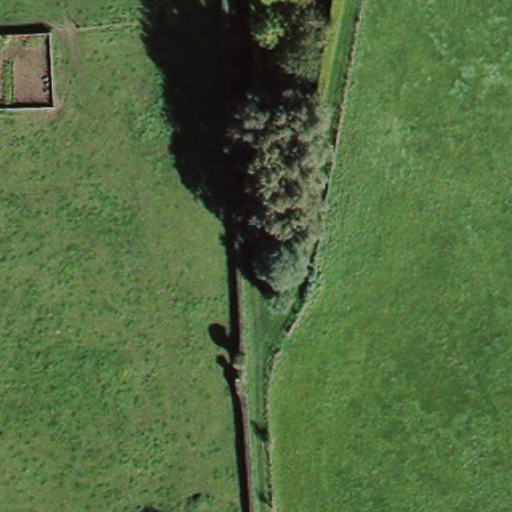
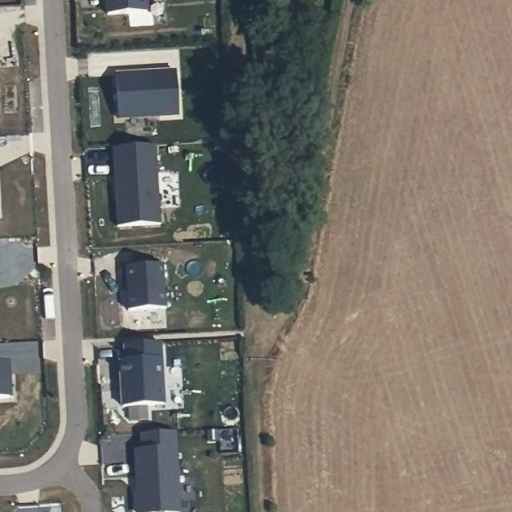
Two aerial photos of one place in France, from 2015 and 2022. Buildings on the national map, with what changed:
new [(147,15),(107,17),(106,0),(146,0),(147,15)]
new [(177,69),(181,116),(120,117),(116,71),(177,69)]
new [(155,143),(160,225),(117,225),(111,143),(155,143)]
new [(161,264),(165,310),(130,311),(126,264),(161,264)]
new [(123,358),(121,342),(161,340),(167,405),(123,407),(117,358),(123,358)]
new [(8,360),(10,398),(0,398),(0,360),(8,360)]
new [(139,433),(175,431),(179,512),(135,512),(133,447),(140,447),(139,433)]

